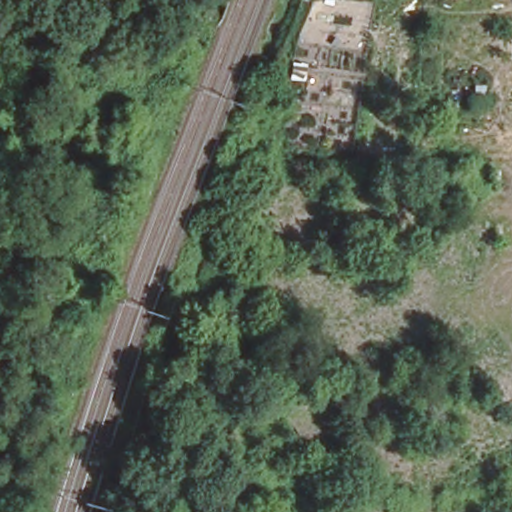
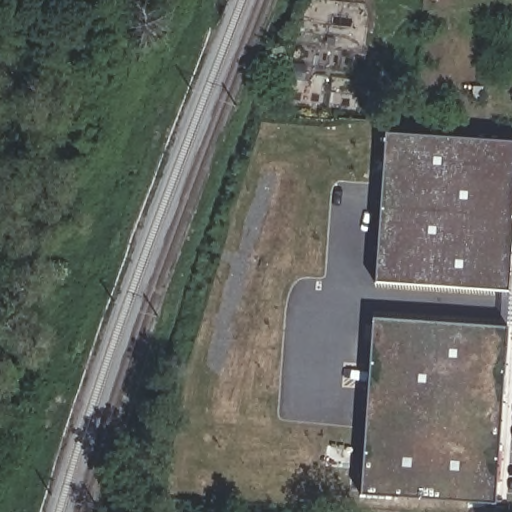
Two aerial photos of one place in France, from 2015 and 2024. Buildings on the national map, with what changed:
new [(509,292),(374,282),(384,130),(512,139),(512,248),(509,292)]
new [(360,494),(372,315),(507,325),(495,503),(360,494)]

